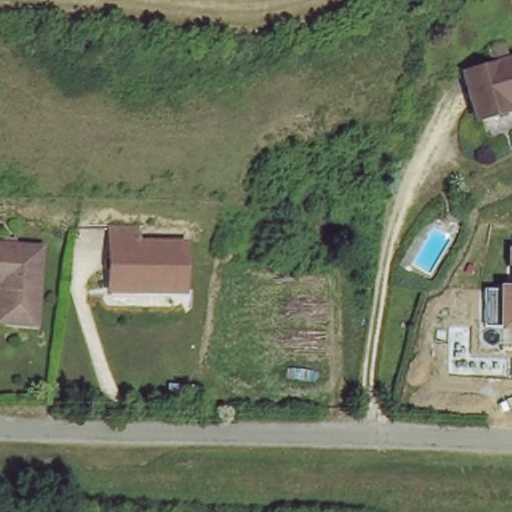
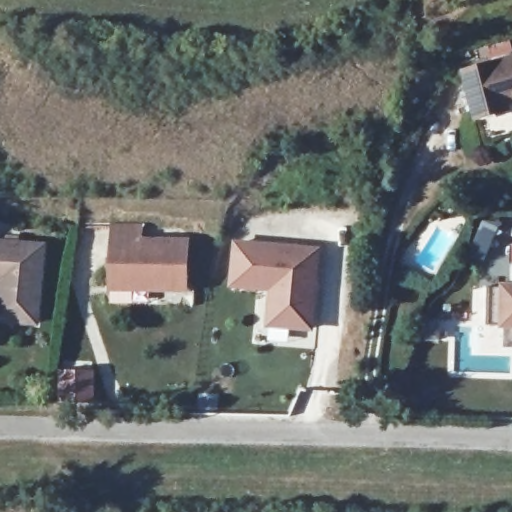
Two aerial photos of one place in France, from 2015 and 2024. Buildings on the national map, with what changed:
unchanged [(468,70),(512,56),(512,96),(508,97),(510,104),(481,115),(468,70)]
unchanged [(138,225),(138,239),(186,240),(184,291),(110,290),(111,225),(138,225)]
new [(233,239),(321,247),(314,332),(266,328),(271,292),(229,288),(233,239)]
unchanged [(0,320),(0,287),(1,275),(0,274),(0,245),(43,250),(41,255),(32,323),(0,320)]
unchanged [(511,264),(511,245),(512,245),(512,264),(511,264)]
unchanged [(502,329),(502,325),(486,325),(487,287),(503,287),(503,283),(512,283),(512,329),(502,329)]

